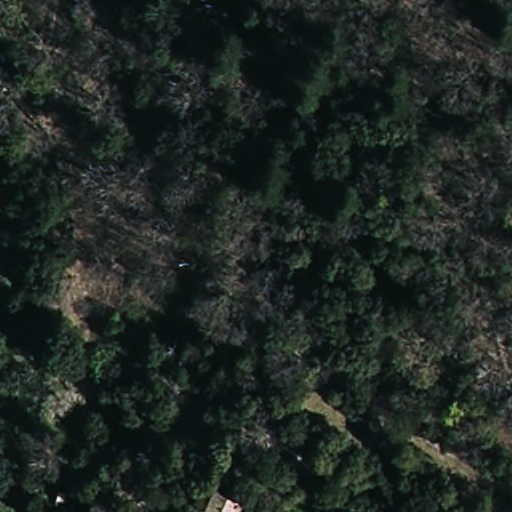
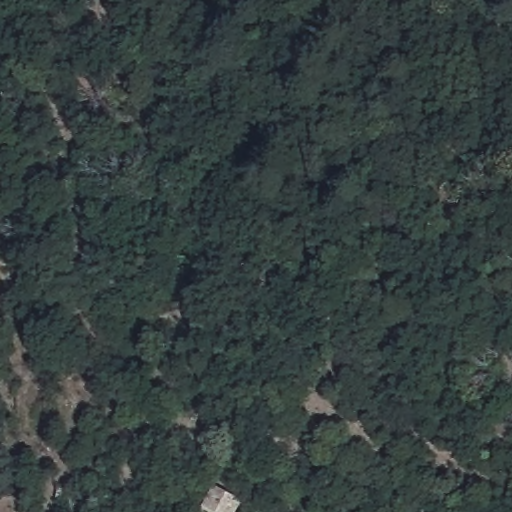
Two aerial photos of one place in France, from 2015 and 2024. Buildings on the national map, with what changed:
unchanged [(89,512),(71,512),(71,504),(89,507),(89,512)]

